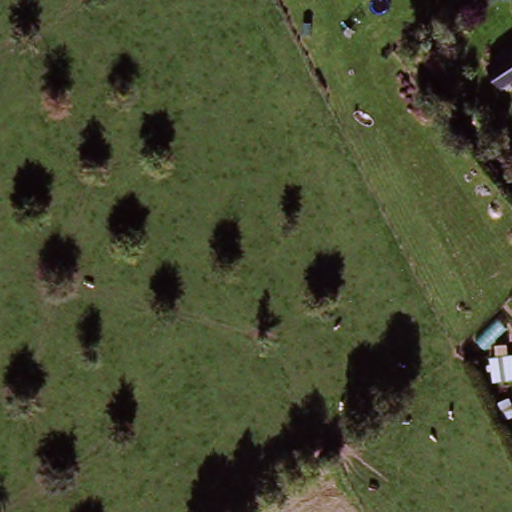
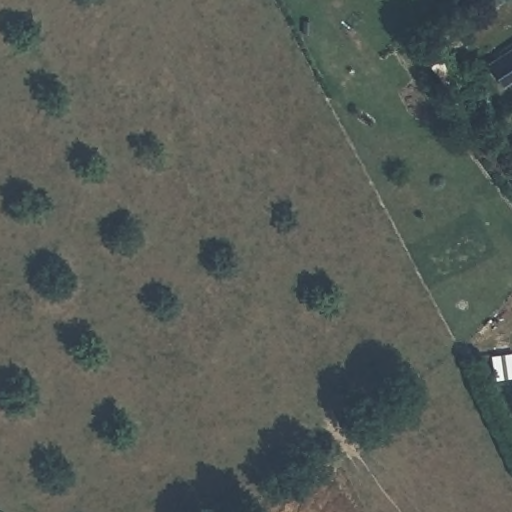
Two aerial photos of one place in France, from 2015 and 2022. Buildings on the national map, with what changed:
unchanged [(440,77),(417,51),(432,40),(453,66),(440,77)]
unchanged [(485,64),(512,47),(512,77),(507,80),(511,88),(505,91),(500,84),(498,85),(485,64)]

